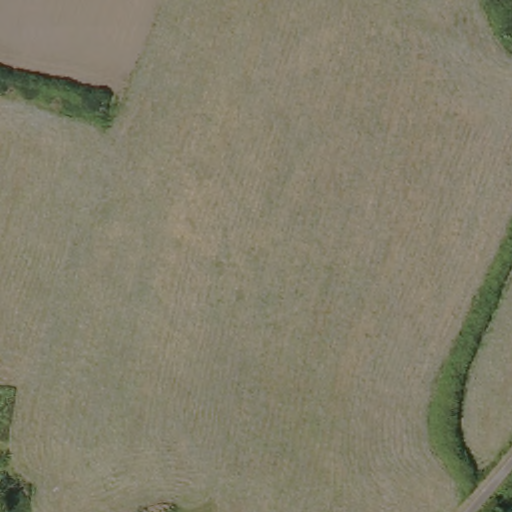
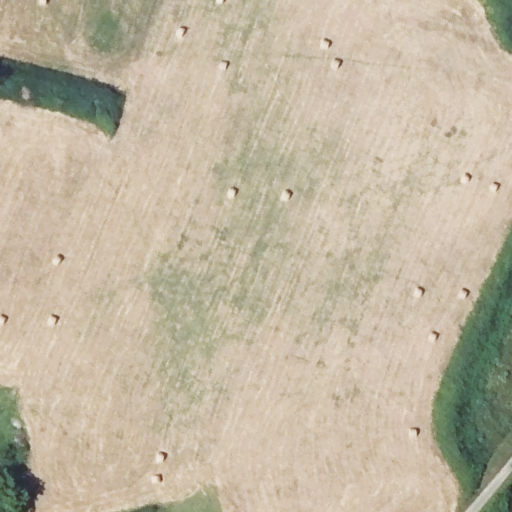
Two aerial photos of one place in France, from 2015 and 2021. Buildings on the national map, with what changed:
[]

